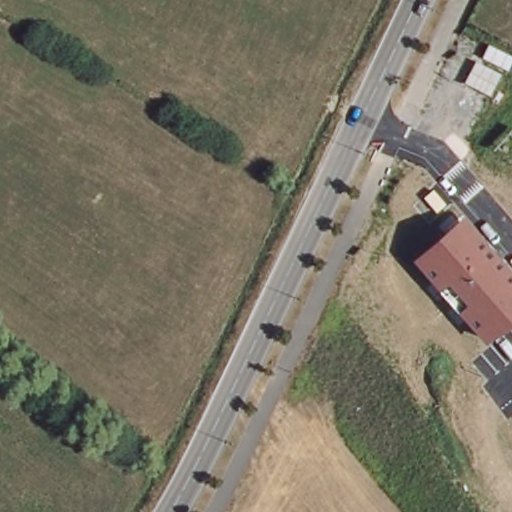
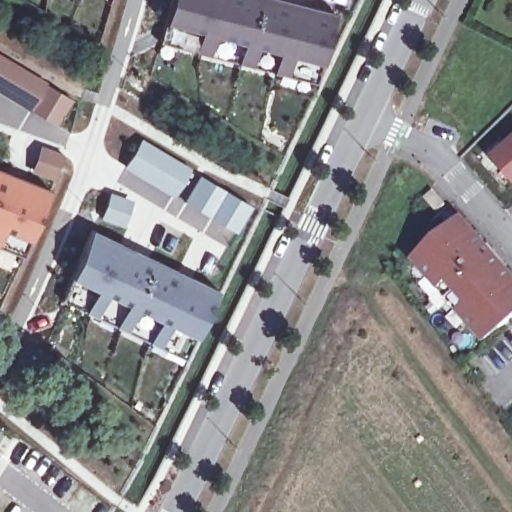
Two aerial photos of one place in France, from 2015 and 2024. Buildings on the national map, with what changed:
new [(327,71),(297,62),(294,80),(277,77),(283,59),(263,52),(255,71),(241,66),(248,49),(220,40),(212,62),(199,57),(205,36),(170,28),(176,0),(273,0),(340,19),(327,71)]
new [(82,105),(70,130),(0,89),(0,53),(15,62),(82,105)]
new [(213,215),(127,159),(140,137),(178,162),(182,157),(204,171),(200,177),(225,192),(213,215)]
new [(512,140),(512,170),(497,152),(512,140)]
new [(67,155),(57,184),(31,174),(40,147),(67,155)]
new [(35,249),(7,235),(4,249),(0,248),(0,172),(55,196),(35,249)]
new [(135,201),(127,230),(100,221),(110,192),(135,201)]
unchanged [(512,271),(512,324),(487,345),(414,260),(466,217),(512,271)]
new [(224,297),(201,347),(179,335),(168,353),(155,347),(164,328),(144,317),(134,338),(122,332),(130,312),(111,303),(100,321),(90,316),(99,297),(93,293),(91,299),(74,292),(97,232),(224,297)]

